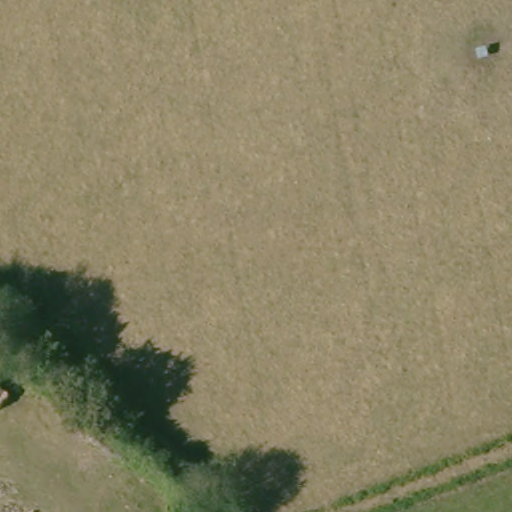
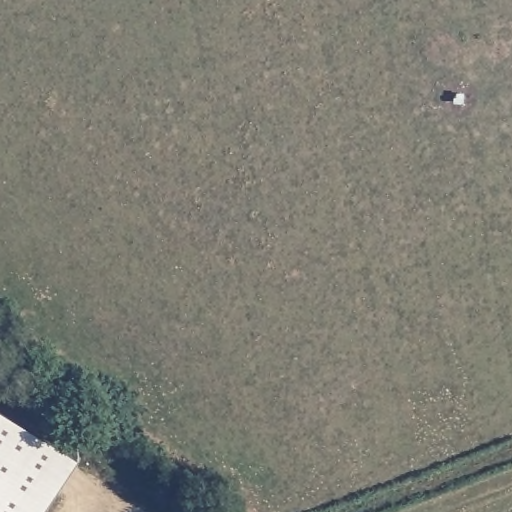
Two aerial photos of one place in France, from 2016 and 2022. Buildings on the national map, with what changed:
new [(44,512),(0,512),(0,406),(78,460),(44,512)]

